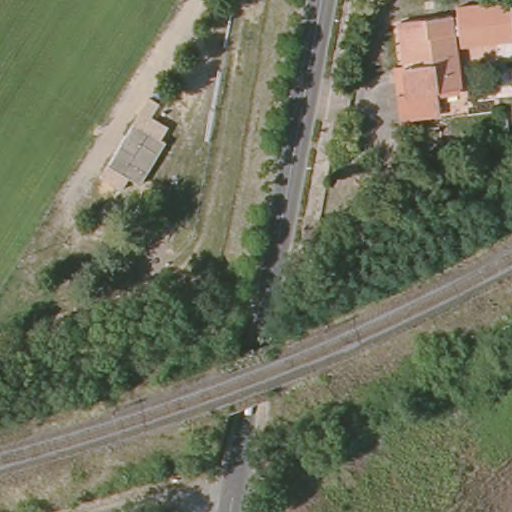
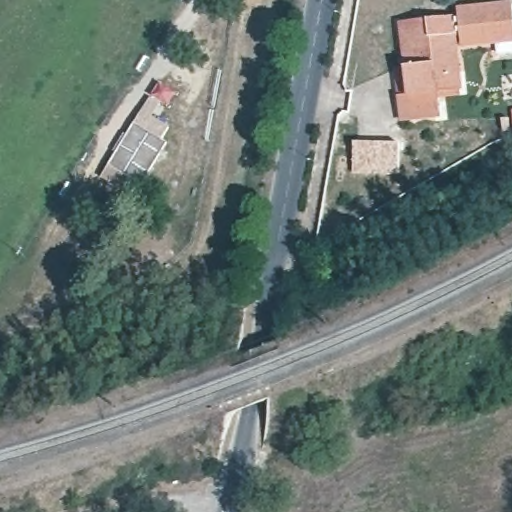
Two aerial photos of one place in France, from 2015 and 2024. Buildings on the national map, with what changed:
unchanged [(406,67),(402,22),(454,17),(455,21),(459,21),(458,8),(512,3),(512,41),(497,43),(462,46),(461,39),(461,35),(456,35),(461,88),(438,91),(440,115),(411,118),(400,120),(395,68),(406,67)]
unchanged [(148,178),(116,159),(141,118),(173,138),(148,178)]
new [(355,141),(399,143),(398,173),(354,171),(355,141)]

